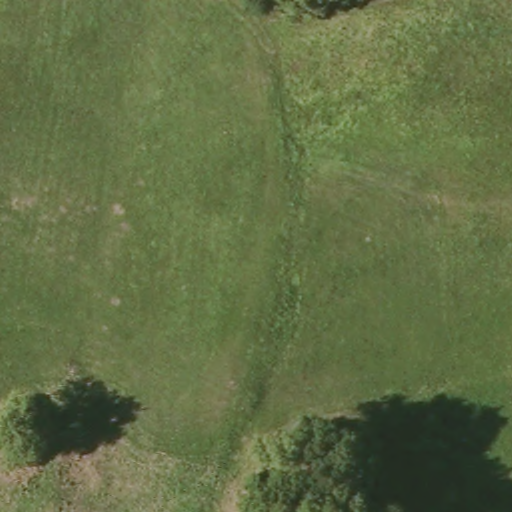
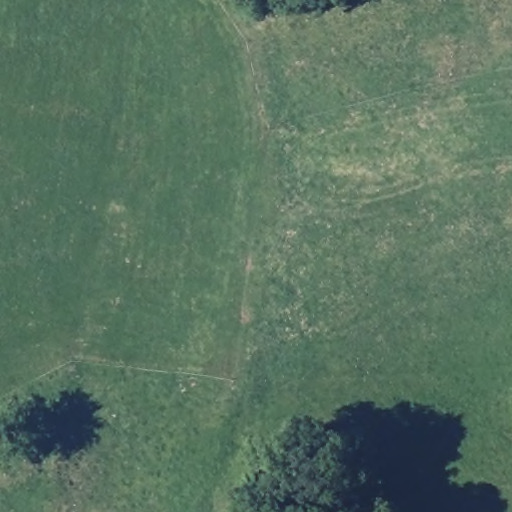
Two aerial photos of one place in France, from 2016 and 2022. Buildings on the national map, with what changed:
[]

